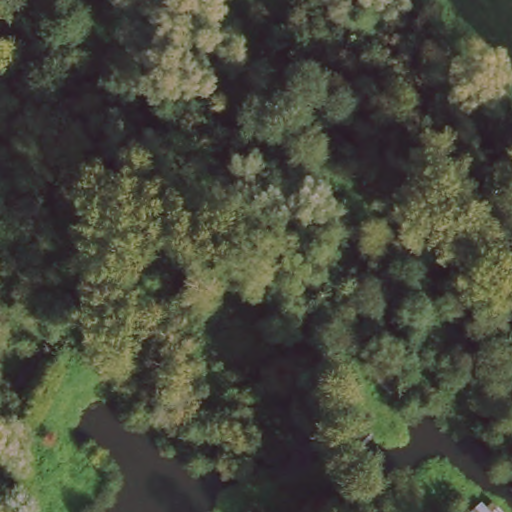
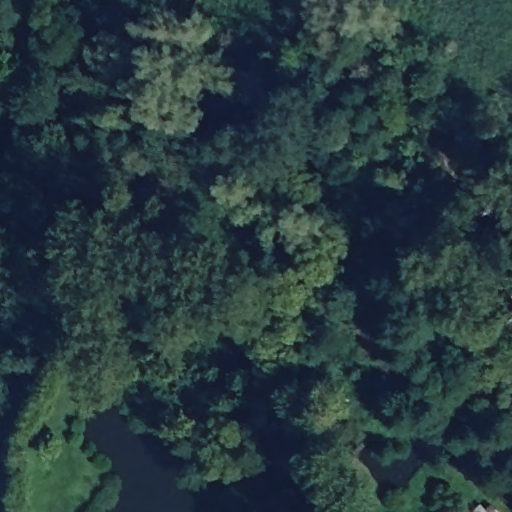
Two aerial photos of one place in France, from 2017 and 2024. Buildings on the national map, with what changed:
unchanged [(502,512),(483,512),(496,503),(502,512)]
unchanged [(481,512),(467,512),(476,506),(481,512)]

